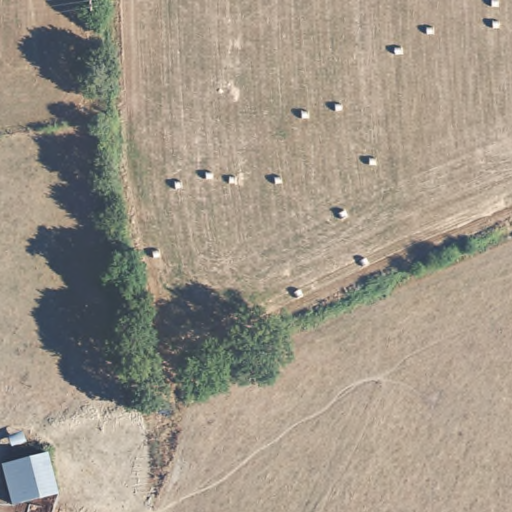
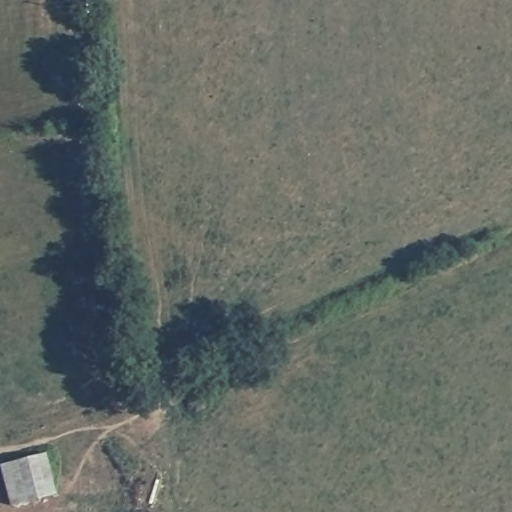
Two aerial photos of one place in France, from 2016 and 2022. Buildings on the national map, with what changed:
unchanged [(51,455),(58,492),(15,504),(2,465),(51,455)]

